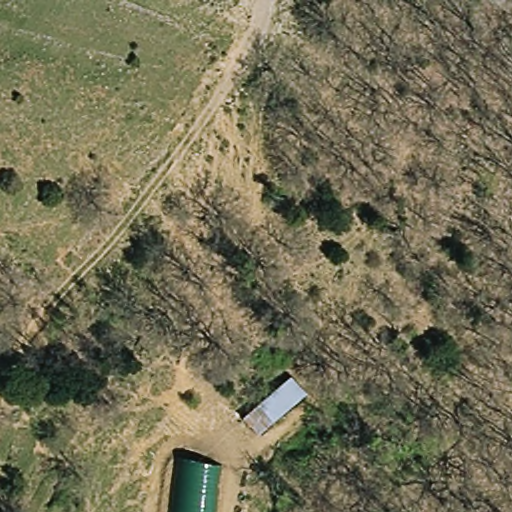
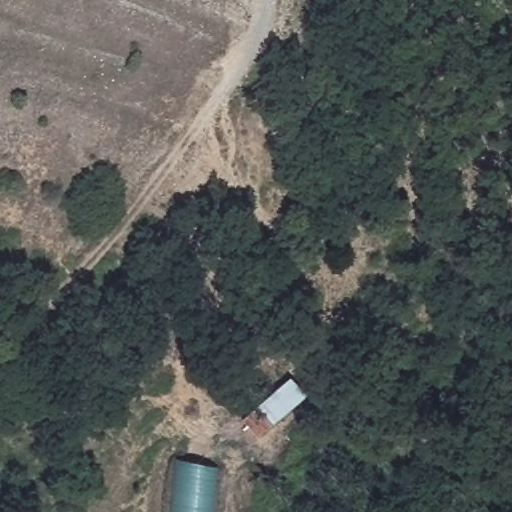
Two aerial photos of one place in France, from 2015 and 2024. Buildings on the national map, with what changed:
unchanged [(247,413),(296,372),(312,388),(260,431),(247,413)]
unchanged [(175,456),(218,461),(213,512),(168,512),(175,456)]

